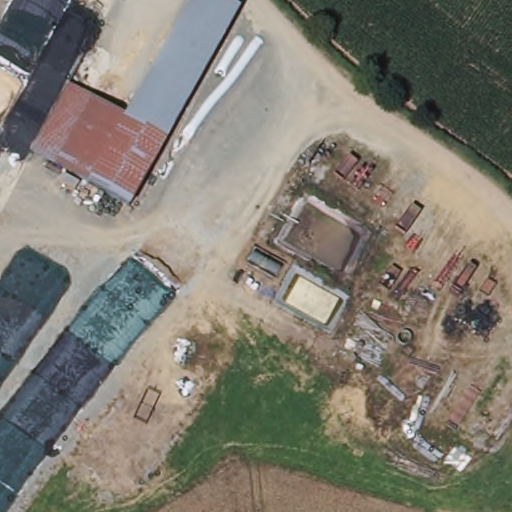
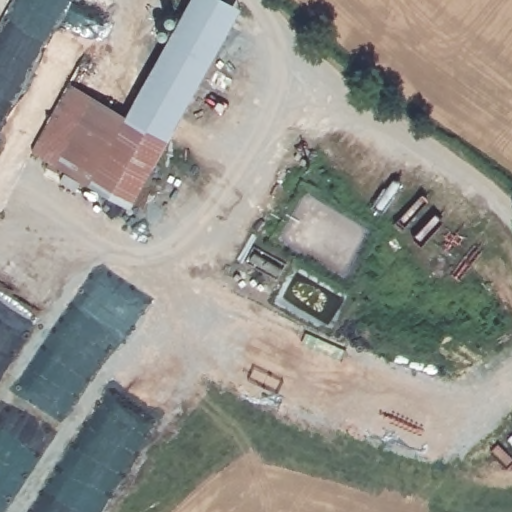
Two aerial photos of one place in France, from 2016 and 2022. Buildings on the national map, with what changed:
unchanged [(192,0),(227,0),(241,8),(169,137),(127,116),(192,0)]
unchanged [(34,151),(71,83),(127,116),(169,137),(132,205),(34,151)]

